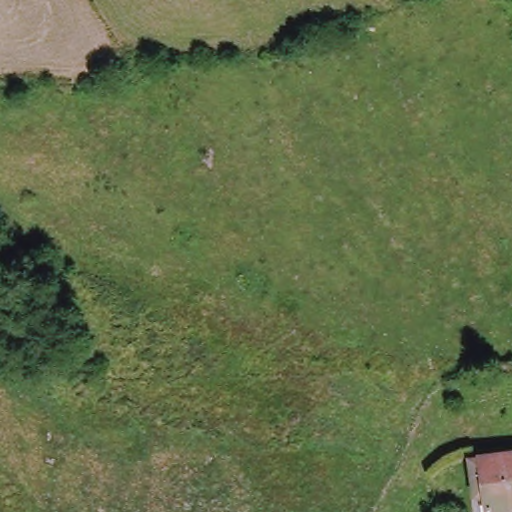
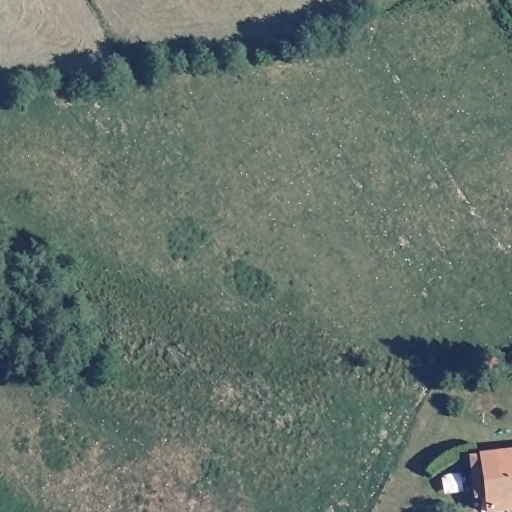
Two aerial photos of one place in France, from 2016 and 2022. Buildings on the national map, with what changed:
unchanged [(512,461),(512,512),(484,512),(476,467),(512,461)]

